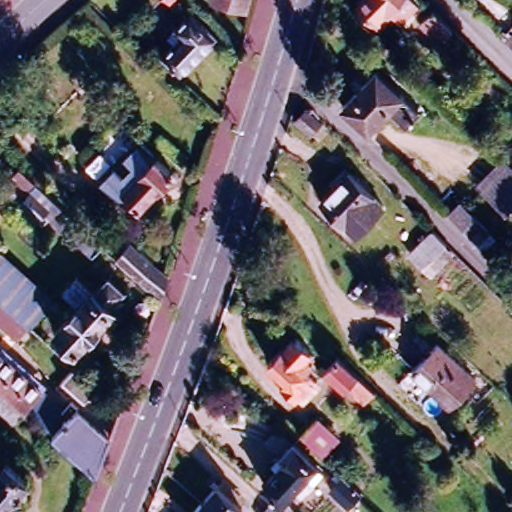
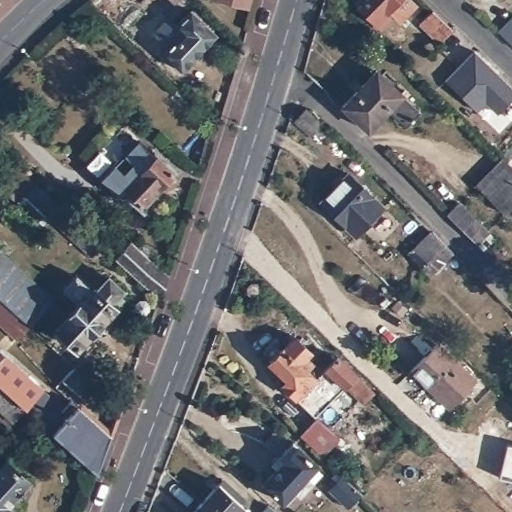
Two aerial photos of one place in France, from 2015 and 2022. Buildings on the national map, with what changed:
unchanged [(253,3),(243,0),(254,0),(253,3)]
unchanged [(394,17),(390,12),(377,25),(356,3),(359,0),(411,0),(394,17)]
unchanged [(451,22),(440,35),(419,16),(431,3),(451,22)]
unchanged [(181,33),(176,27),(191,11),(215,35),(180,71),(162,53),(181,33)]
unchanged [(500,40),(512,27),(512,46),(510,49),(500,40)]
new [(512,98),(497,113),(485,99),(475,109),(448,81),(475,52),(512,87),(512,98)]
unchanged [(419,108),(403,124),(385,106),(366,125),(340,101),(376,66),(419,108)]
unchanged [(313,138),(296,121),(306,110),(325,127),(313,138)]
demolished [(512,153),(512,158),(510,156),(512,153)]
unchanged [(6,161),(0,167),(0,155),(6,161)]
unchanged [(166,195),(164,193),(146,211),(121,186),(147,160),(152,155),(161,164),(180,181),(166,195)]
unchanged [(475,182),(502,155),(512,164),(512,202),(504,211),(475,182)]
unchanged [(91,248),(48,207),(41,215),(3,180),(19,162),(21,165),(22,165),(83,222),(95,232),(101,238),(91,248)]
unchanged [(358,236),(349,226),(324,202),(352,175),(376,198),(361,215),(371,223),(358,236)]
unchanged [(475,244),(449,218),(447,216),(460,205),(487,232),(475,244)]
unchanged [(425,268),(412,256),(435,232),(440,237),(448,246),(454,252),(431,275),(425,268)]
unchanged [(130,250),(148,267),(153,272),(157,275),(160,277),(165,280),(161,292),(158,299),(152,294),(138,283),(130,275),(118,262),(130,250)]
unchanged [(46,298),(24,322),(11,337),(0,327),(0,255),(46,298)]
unchanged [(97,299),(111,284),(127,299),(113,315),(116,318),(79,359),(56,338),(80,313),(65,299),(77,287),(91,301),(93,298),(97,299)]
unchanged [(290,335),(303,346),(298,351),(305,357),(300,364),(308,373),(295,387),(290,383),(285,388),(274,377),(277,372),(265,361),(290,335)]
unchanged [(358,392),(341,376),(338,378),(320,361),(332,347),(344,358),(345,360),(350,365),(368,382),(358,392)]
unchanged [(475,383),(448,408),(411,373),(436,347),(475,383)]
unchanged [(33,440),(0,409),(0,407),(6,401),(0,395),(0,393),(5,388),(0,384),(0,349),(42,388),(63,407),(71,398),(110,435),(107,442),(100,461),(98,467),(96,472),(68,446),(46,426),(33,440)]
unchanged [(86,397),(61,374),(73,362),(90,378),(96,385),(86,397)]
unchanged [(283,450),(298,433),(312,418),(335,439),(320,455),(285,492),(268,477),(289,456),(283,450)]
unchanged [(6,506),(14,512),(0,512),(0,472),(8,463),(28,482),(6,506)]
unchanged [(355,488),(360,493),(345,508),(327,491),(342,476),(355,488)]
unchanged [(208,482),(229,503),(221,511),(223,512),(179,512),(190,501),(208,482)]
unchanged [(268,512),(262,506),(273,493),(292,512),(268,512)]

